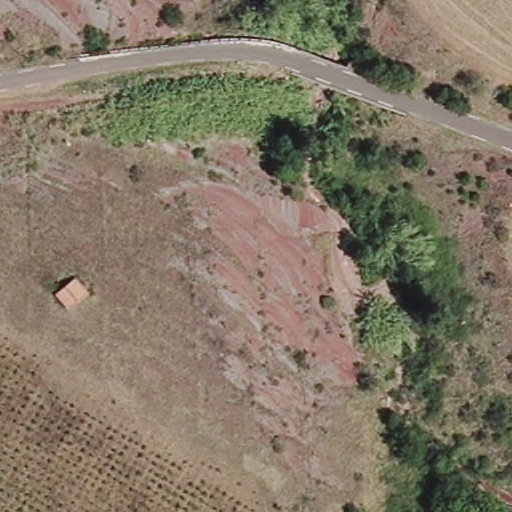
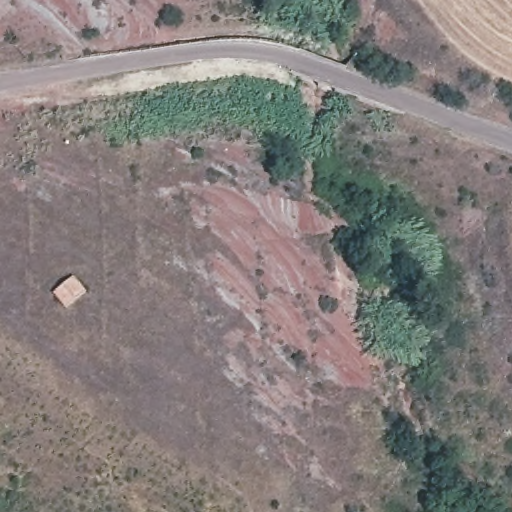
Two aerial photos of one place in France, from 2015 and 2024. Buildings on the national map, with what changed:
unchanged [(48,286),(78,272),(89,292),(58,308),(48,286)]

